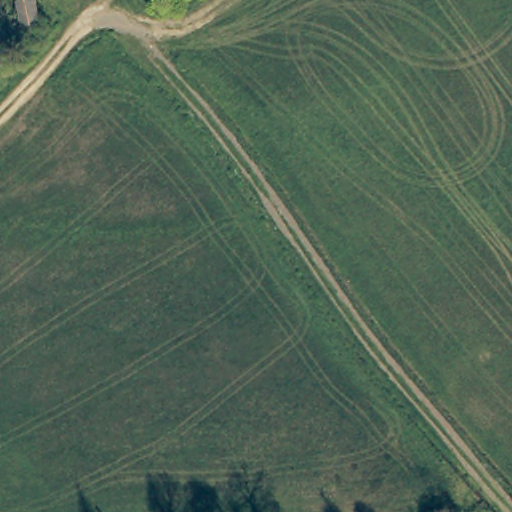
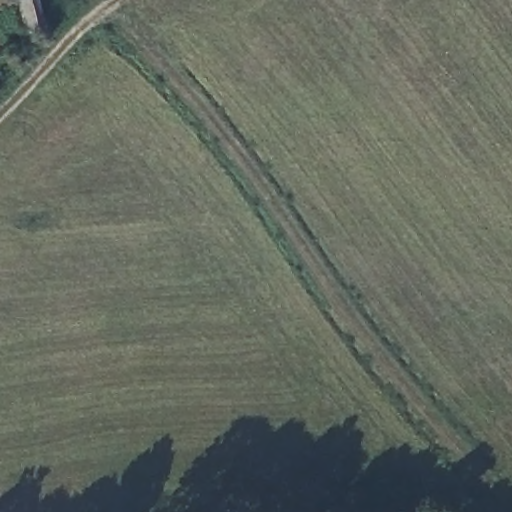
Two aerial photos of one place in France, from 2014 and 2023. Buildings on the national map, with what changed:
unchanged [(21,0),(24,0),(39,0),(47,30),(31,33),(21,0)]

